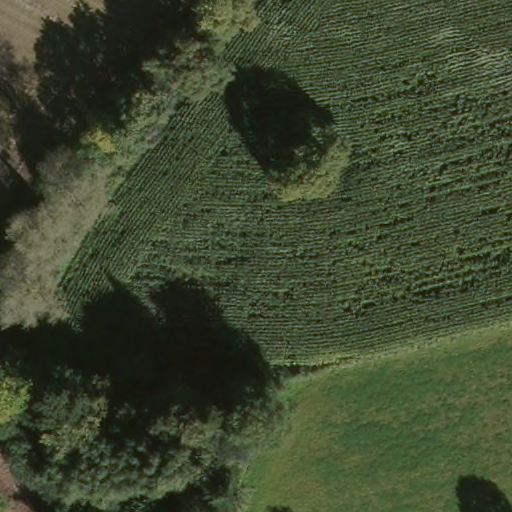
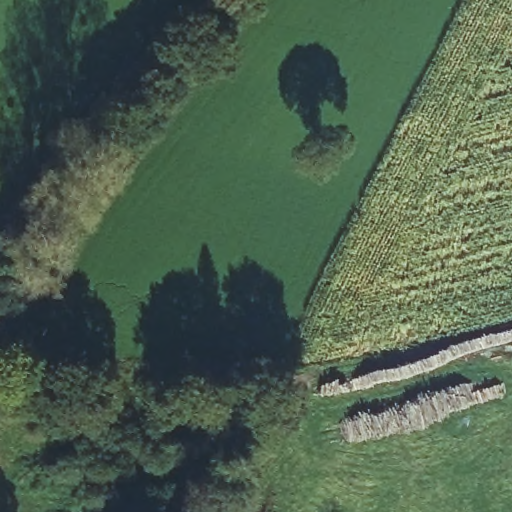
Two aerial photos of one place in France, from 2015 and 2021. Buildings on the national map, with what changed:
[]

